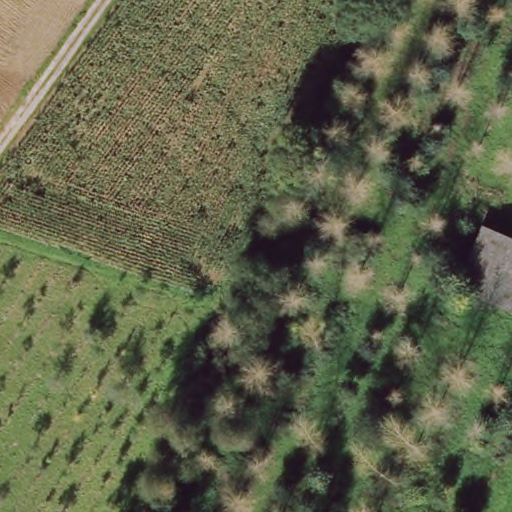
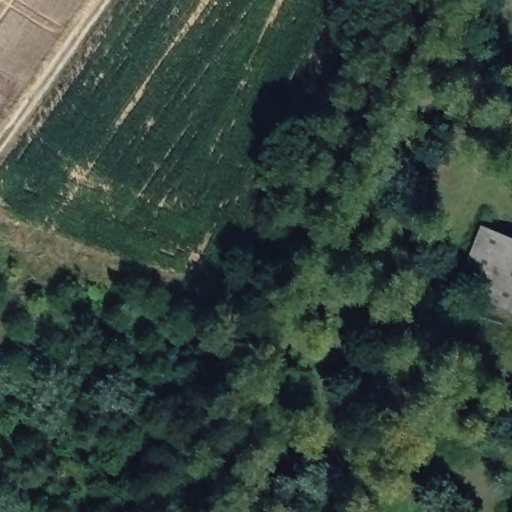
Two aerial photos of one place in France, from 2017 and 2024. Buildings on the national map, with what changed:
unchanged [(460,290),(485,230),(512,240),(512,309),(460,290)]

